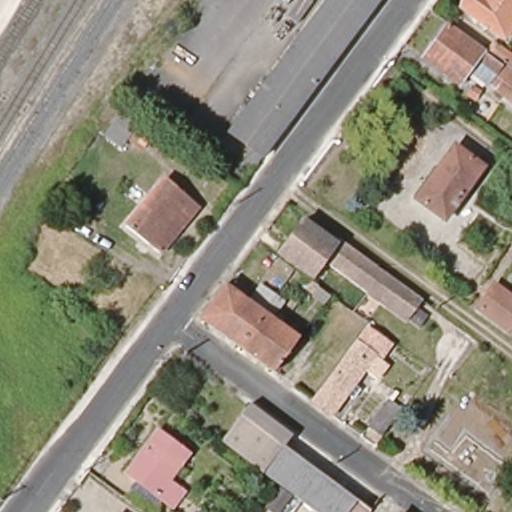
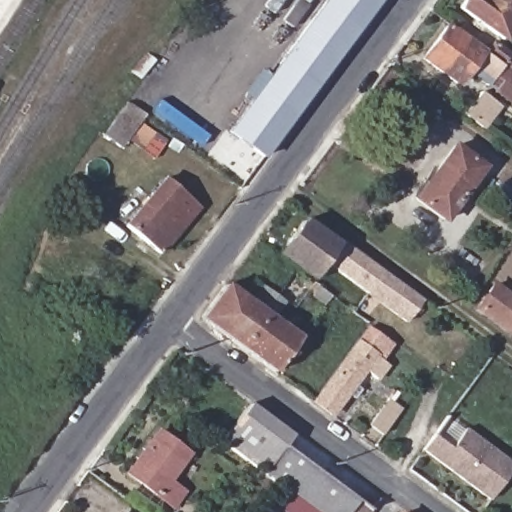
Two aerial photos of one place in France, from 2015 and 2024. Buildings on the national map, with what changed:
unchanged [(323,0),(381,0),(266,160),(228,130),(323,0)]
unchanged [(460,9),(468,0),(512,0),(512,29),(503,41),(460,9)]
unchanged [(492,78),(475,64),(459,85),(424,59),(448,29),(500,68),(502,65),(512,73),(512,89),(494,75),(492,78)]
unchanged [(494,44),(507,53),(500,64),(486,54),(494,44)]
unchanged [(453,149),(483,171),(465,194),(436,173),(453,149)]
unchanged [(465,194),(445,222),(416,200),(436,173),(465,194)]
unchanged [(80,178),(77,181),(73,179),(75,175),(80,178)]
unchanged [(166,254),(130,228),(166,179),(200,205),(166,254)]
unchanged [(418,297),(424,301),(408,324),(323,262),(311,278),(278,255),(303,222),(336,244),(340,239),(418,297)]
unchanged [(320,289),(316,294),(305,287),(309,280),(320,289)]
unchanged [(249,300),(263,282),(290,302),(277,320),(299,337),(273,370),(201,317),(226,283),(249,300)]
unchanged [(512,329),(479,305),(493,287),(512,301),(512,329)]
unchanged [(370,329),(392,346),(380,363),(375,360),(332,418),(314,406),(370,329)]
unchanged [(223,444),(250,408),(292,438),(284,449),(371,512),(315,512),(281,487),(265,475),(223,444)]
new [(449,452),(464,432),(512,467),(512,472),(490,503),(422,453),(432,439),(449,452)]
unchanged [(135,467),(160,433),(189,454),(170,480),(186,492),(175,507),(141,483),(130,474),(135,467)]

